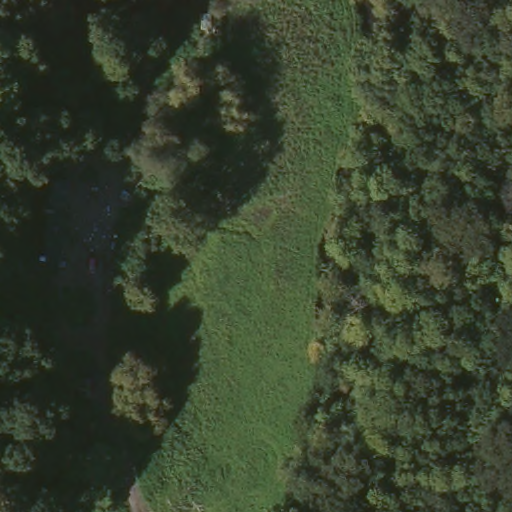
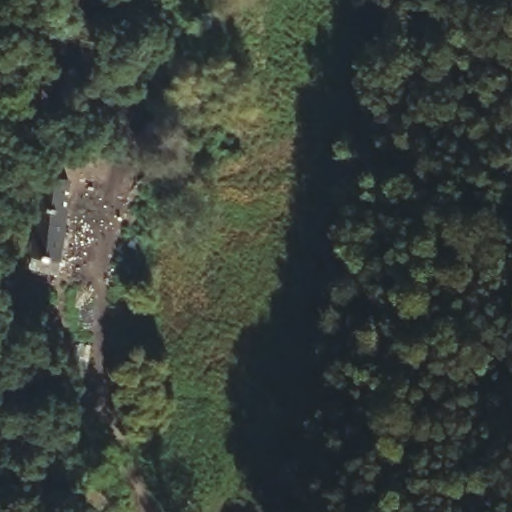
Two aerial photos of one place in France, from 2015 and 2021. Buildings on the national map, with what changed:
unchanged [(122,37),(124,38),(140,41),(134,75),(116,74),(122,37)]
unchanged [(179,63),(200,86),(164,123),(143,98),(159,82),(179,63)]
unchanged [(70,175),(69,262),(36,263),(36,174),(70,175)]

